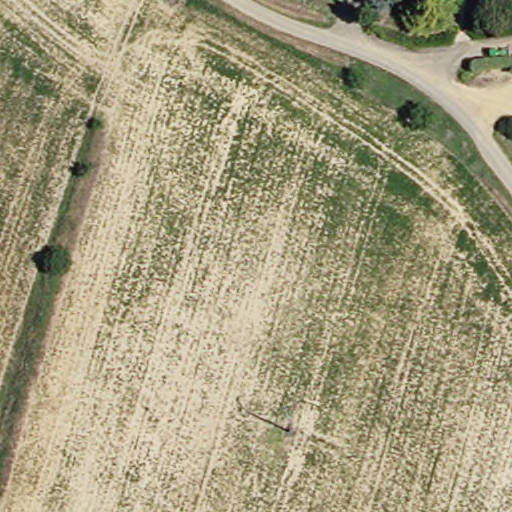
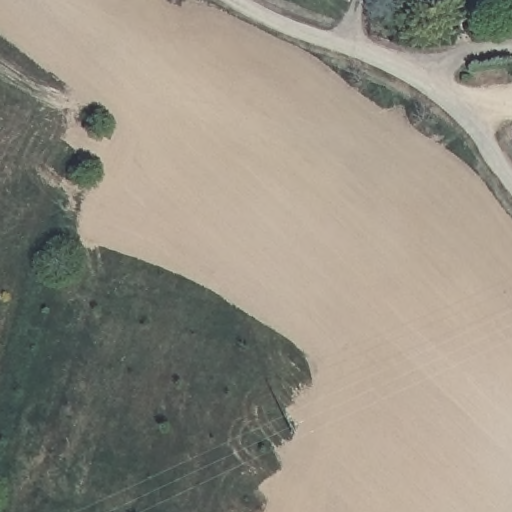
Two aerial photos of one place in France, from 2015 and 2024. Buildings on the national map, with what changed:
[]

